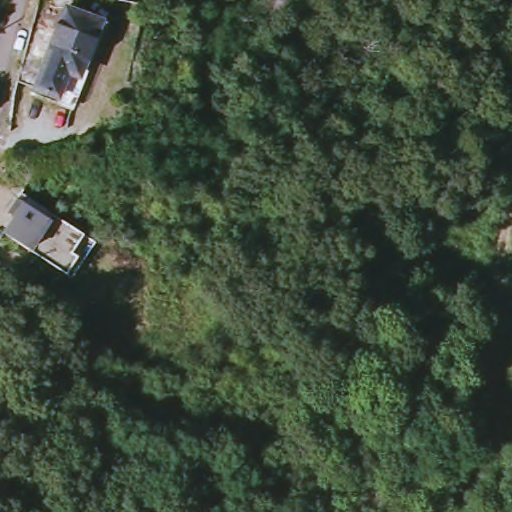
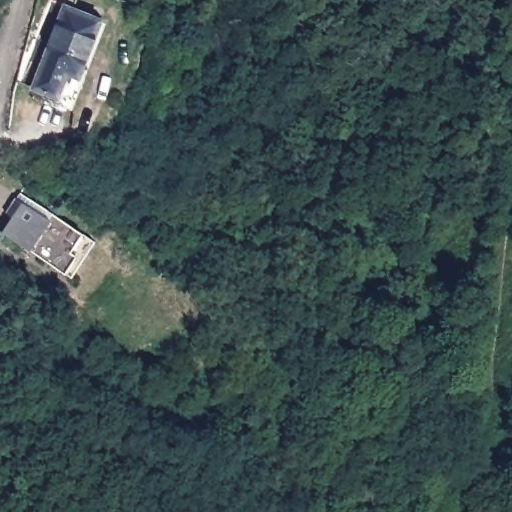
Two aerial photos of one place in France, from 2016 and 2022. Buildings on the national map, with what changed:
unchanged [(89,16),(116,27),(100,65),(90,62),(73,103),(32,86),(38,71),(65,0),(93,0),(89,16)]
unchanged [(8,237),(18,221),(13,217),(25,197),(88,240),(76,258),(83,262),(71,279),(8,237)]

